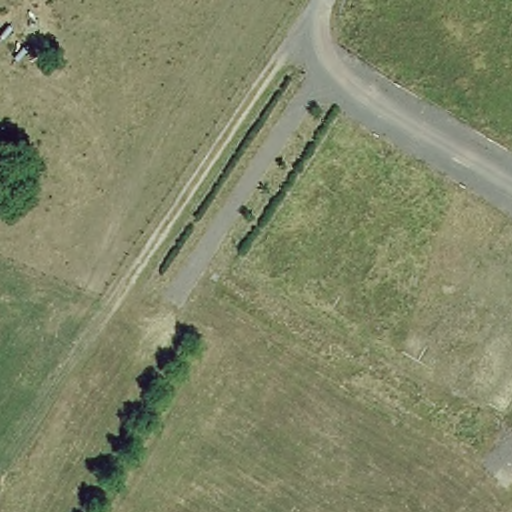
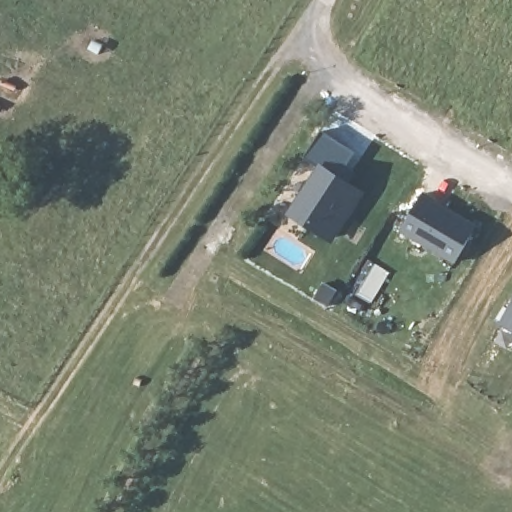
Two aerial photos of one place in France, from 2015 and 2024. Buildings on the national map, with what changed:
new [(316,167),(304,159),(321,131),(356,152),(347,167),(356,171),(350,183),(366,193),(333,244),(287,214),(316,167)]
new [(421,191),(477,224),(455,263),(397,228),(421,191)]
new [(373,262),(390,272),(371,302),(355,293),(373,262)]
new [(512,299),(512,333),(497,325),(512,299)]

